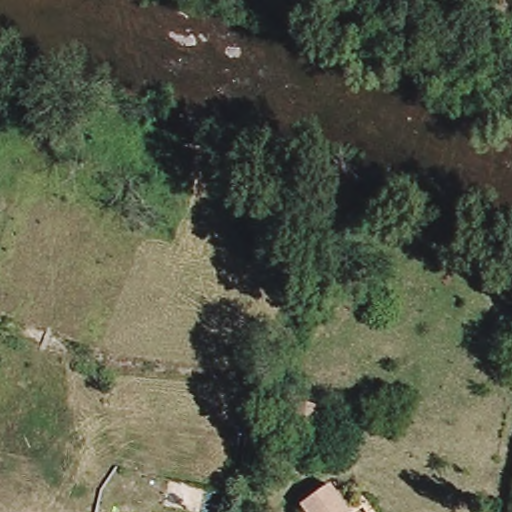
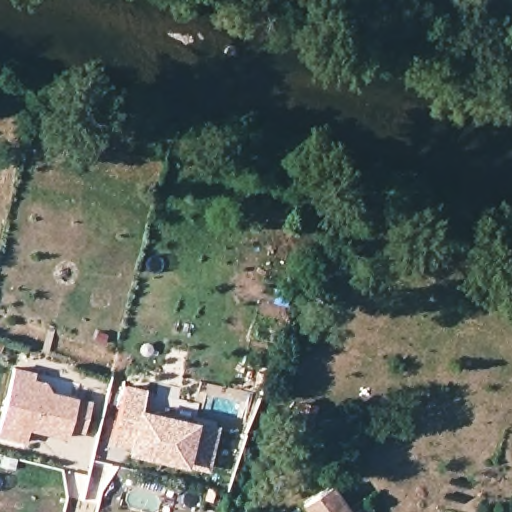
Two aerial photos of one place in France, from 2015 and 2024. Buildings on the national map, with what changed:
new [(33,442),(4,435),(17,381),(21,367),(38,371),(36,378),(45,380),(46,388),(86,398),(79,430),(65,426),(62,435),(48,432),(36,429),(33,442)]
new [(126,376),(148,382),(146,390),(143,401),(217,419),(207,458),(133,440),(134,435),(113,430),(125,385),(126,376)]
new [(302,398),(316,402),(310,428),(294,425),(302,398)]
demolished [(303,425),(317,430),(310,455),(295,451),(303,425)]
unchanged [(303,512),(312,507),(305,492),(335,475),(356,510),(353,512),(303,512)]

